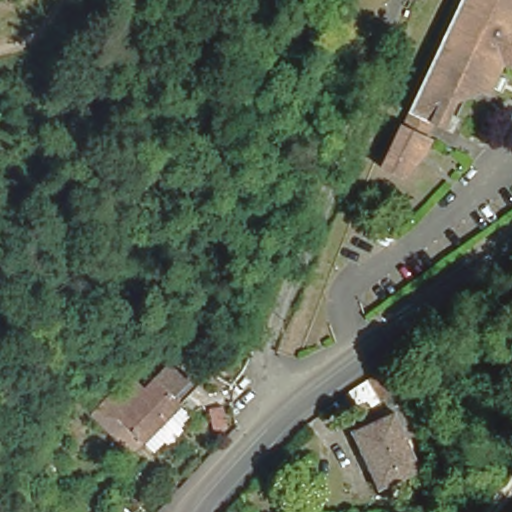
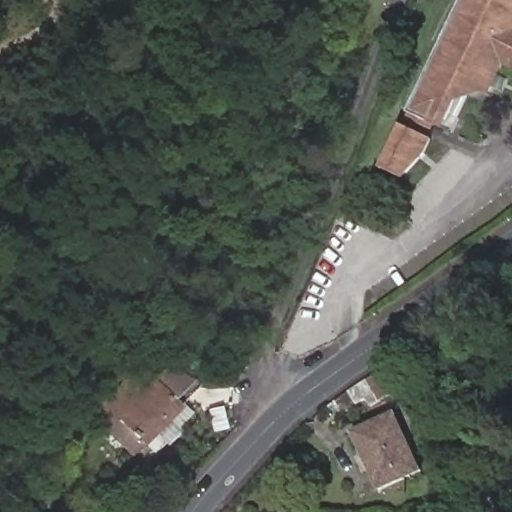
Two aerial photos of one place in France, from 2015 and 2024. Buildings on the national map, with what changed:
unchanged [(449,117),(445,125),(444,124),(441,122),(430,142),(432,144),(426,157),(402,178),(382,170),(460,0),(512,0),(512,68),(501,63),(485,97),(469,90),(456,120),(449,117)]
unchanged [(399,391),(385,398),(382,393),(360,404),(353,391),(372,376),(389,370),(399,391)]
unchanged [(122,455),(98,430),(162,372),(193,390),(122,455)]
unchanged [(417,470),(377,487),(353,430),(393,411),(417,470)]

